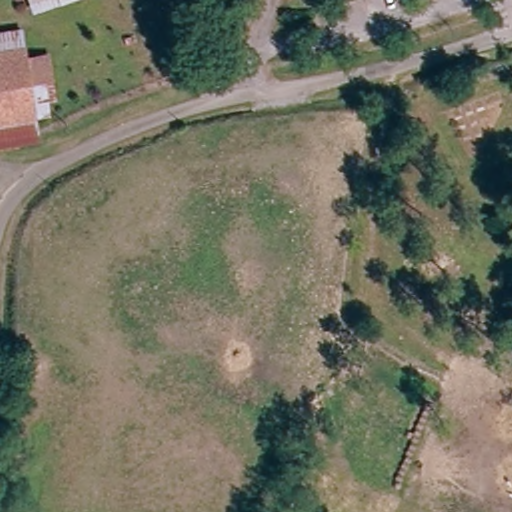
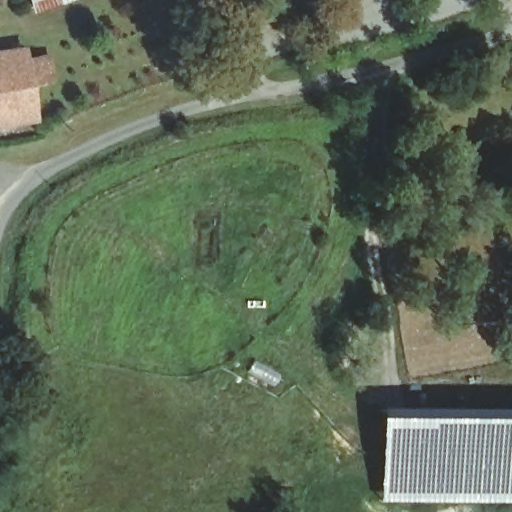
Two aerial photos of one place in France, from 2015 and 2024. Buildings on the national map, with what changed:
unchanged [(69,0),(33,14),(29,0),(69,0)]
unchanged [(9,25),(22,25),(26,52),(49,51),(57,100),(49,102),(50,129),(57,127),(58,139),(0,149),(0,19),(9,17),(9,25)]
new [(497,418),(512,418),(512,502),(448,500),(379,501),(377,417),(497,418)]

